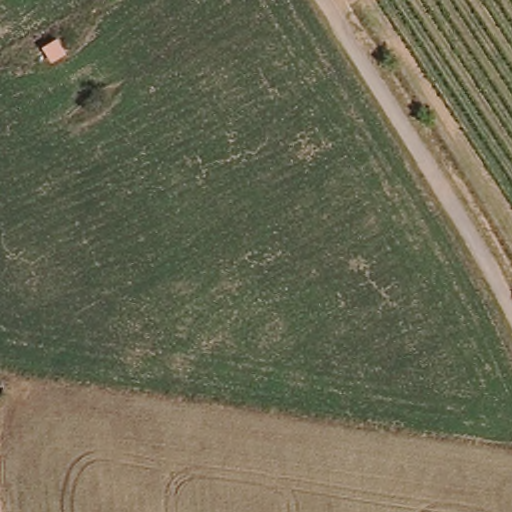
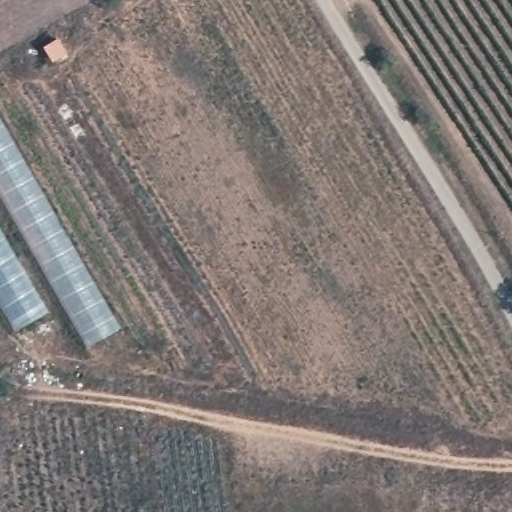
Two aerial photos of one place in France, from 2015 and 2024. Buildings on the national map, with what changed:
unchanged [(49,45),(62,37),(70,52),(58,60),(49,45)]
new [(89,348),(0,194),(0,116),(123,329),(89,348)]
new [(16,332),(0,305),(0,226),(50,312),(16,332)]

